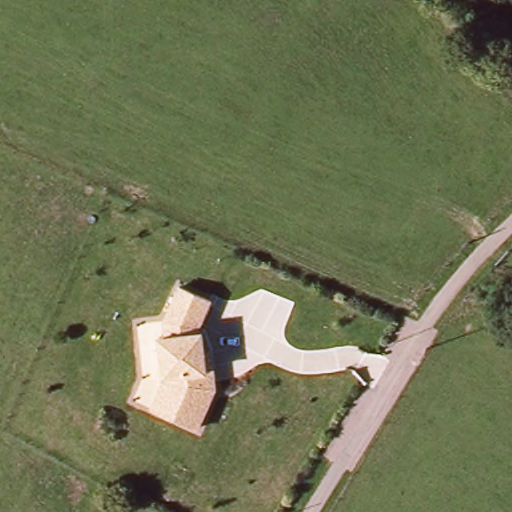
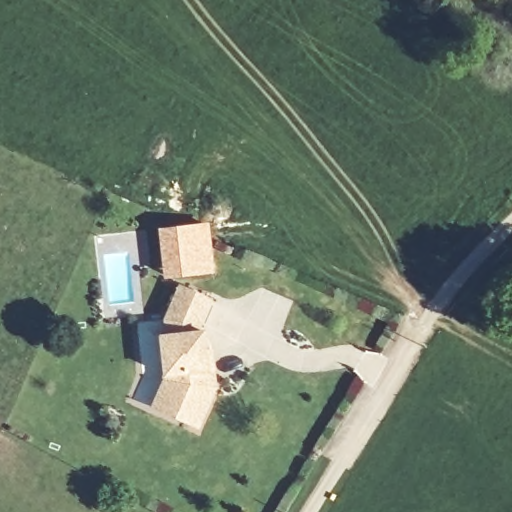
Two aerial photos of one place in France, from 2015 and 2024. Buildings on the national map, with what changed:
new [(209,220),(214,272),(161,277),(156,226),(209,220)]
unchanged [(164,412),(174,390),(176,384),(171,340),(177,340),(176,325),(191,290),(222,303),(211,330),(212,335),(214,335),(217,342),(223,354),(227,391),(210,432),(184,420),(177,417),(164,412)]

